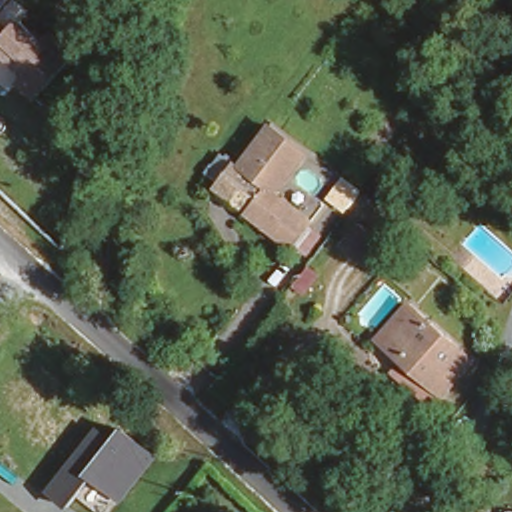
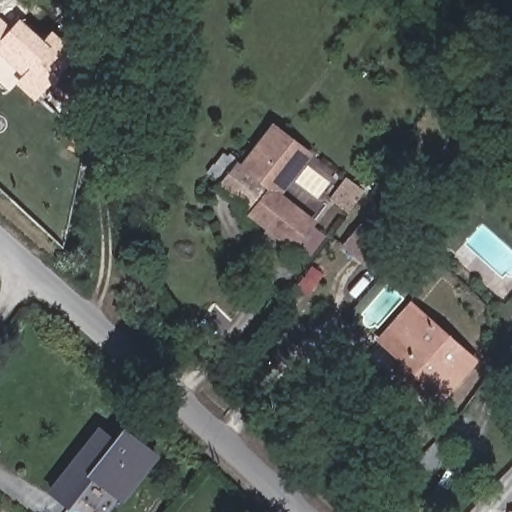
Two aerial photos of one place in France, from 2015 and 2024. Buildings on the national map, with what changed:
unchanged [(9,82),(19,72),(0,55),(0,27),(3,30),(11,20),(34,41),(44,31),(68,52),(36,87),(27,98),(9,82)]
unchanged [(306,255),(291,245),(247,216),(250,212),(214,189),(232,161),(238,165),(266,122),(303,146),(274,190),(311,215),(326,225),(306,255)]
unchanged [(361,270),(328,246),(344,223),(378,249),(361,270)]
unchanged [(375,330),(404,291),(420,303),(391,343),(375,330)]
unchanged [(443,385),(391,343),(420,303),(475,347),(443,385)]
unchanged [(121,504),(90,481),(67,510),(49,493),(103,425),(114,433),(122,422),(160,455),(121,504)]

